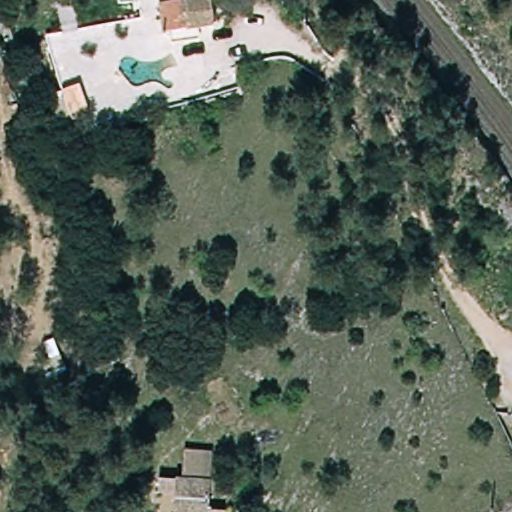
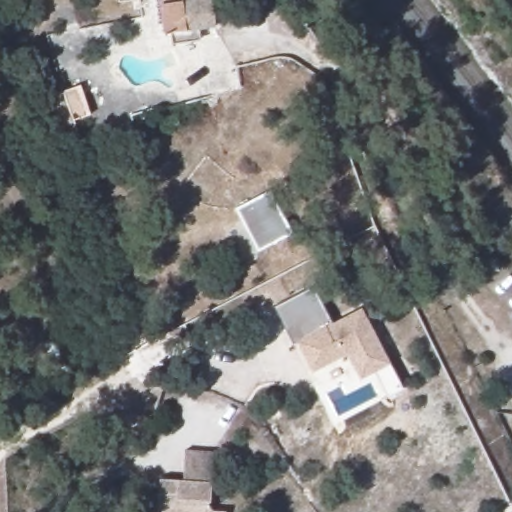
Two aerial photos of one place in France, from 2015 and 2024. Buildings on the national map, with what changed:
unchanged [(178,5),(181,34),(160,38),(156,9),(155,0),(181,0),(182,4),(178,5)]
unchanged [(205,0),(209,26),(190,28),(185,1),(191,0),(205,0)]
unchanged [(86,111),(87,113),(72,118),(75,127),(55,133),(44,96),(79,85),(86,111)]
new [(236,208),(269,192),(291,235),(257,251),(236,208)]
new [(392,367),(351,386),(338,359),(310,372),(276,307),(311,287),(329,318),(361,300),(375,330),(380,341),(392,367)]
unchanged [(210,512),(175,512),(176,502),(159,501),(160,485),(183,486),(185,454),(213,456),(211,491),(210,512)]

